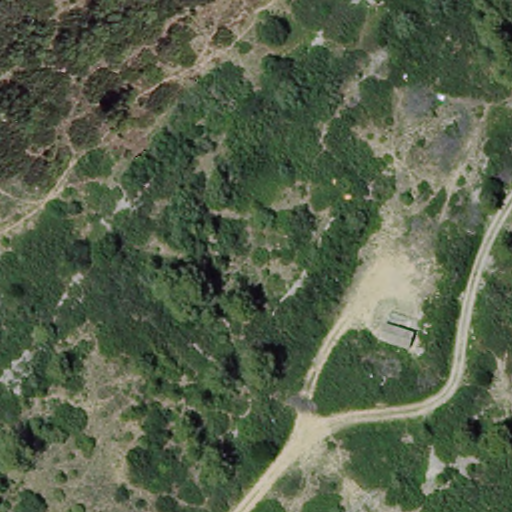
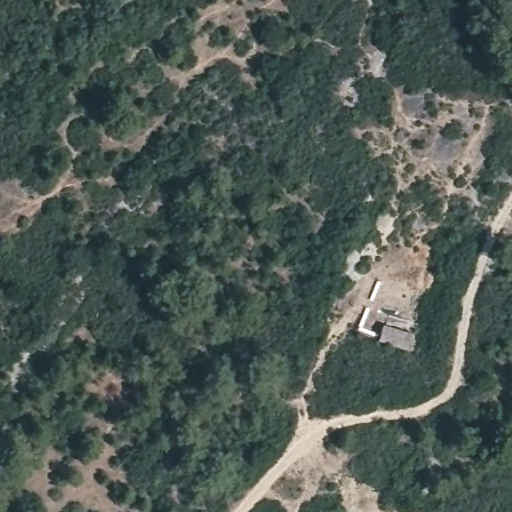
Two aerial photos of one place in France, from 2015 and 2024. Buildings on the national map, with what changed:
unchanged [(419,328),(414,352),(384,344),(391,321),(419,328)]

